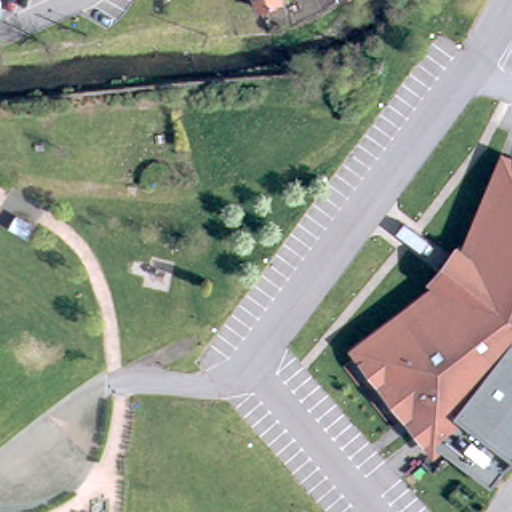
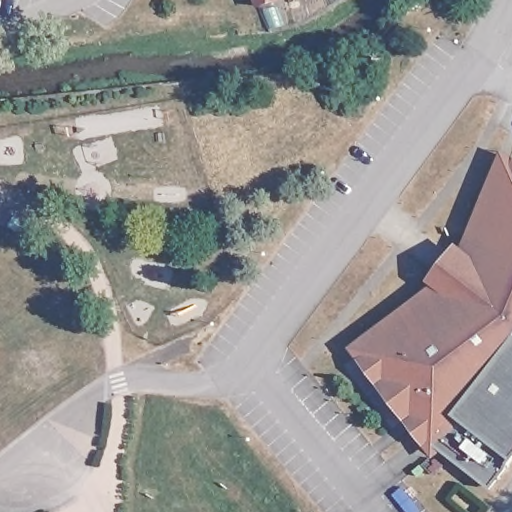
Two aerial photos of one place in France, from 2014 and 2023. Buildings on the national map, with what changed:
unchanged [(257,2),(255,0),(263,0),(257,2)]
unchanged [(512,161),(512,458),(490,487),(432,441),(363,347),(452,280),(445,272),(456,257),(465,264),(507,159),(512,161)]
unchanged [(35,217),(27,231),(10,220),(17,207),(35,217)]

